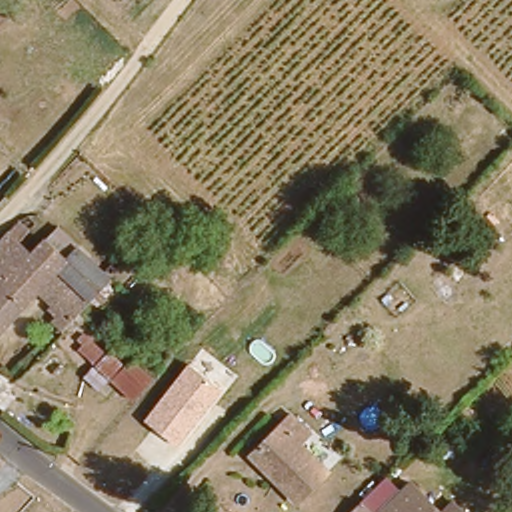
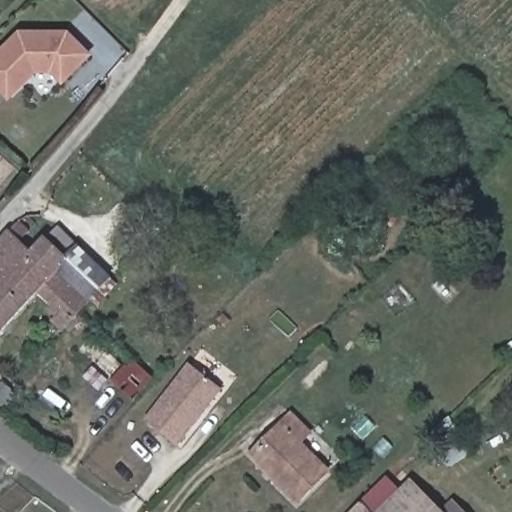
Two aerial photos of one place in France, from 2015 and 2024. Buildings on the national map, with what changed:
new [(62,83),(50,69),(37,70),(10,99),(5,95),(0,102),(0,48),(20,28),(70,29),(94,53),(62,83)]
unchanged [(7,229),(20,217),(31,229),(22,239),(32,249),(59,222),(82,244),(61,267),(90,294),(94,299),(109,314),(97,327),(94,323),(82,309),(62,329),(53,319),(60,312),(39,289),(0,330),(0,237),(7,229)]
unchanged [(111,274),(90,294),(61,267),(82,244),(111,274)]
unchanged [(153,379),(131,401),(73,341),(84,330),(105,356),(111,349),(127,367),(134,360),(153,379)]
unchanged [(180,445),(148,420),(190,364),(224,391),(180,445)]
unchanged [(4,410),(2,413),(0,410),(0,393),(1,392),(12,402),(4,410)]
unchanged [(257,447),(295,413),(312,431),(302,441),(330,469),(296,501),(272,476),(251,453),(257,447)]
unchanged [(380,511),(379,512),(346,512),(356,501),(382,476),(396,491),(398,493),(412,481),(441,512),(381,512),(380,511)]
unchanged [(453,502),(463,512),(444,512),(453,502)]

